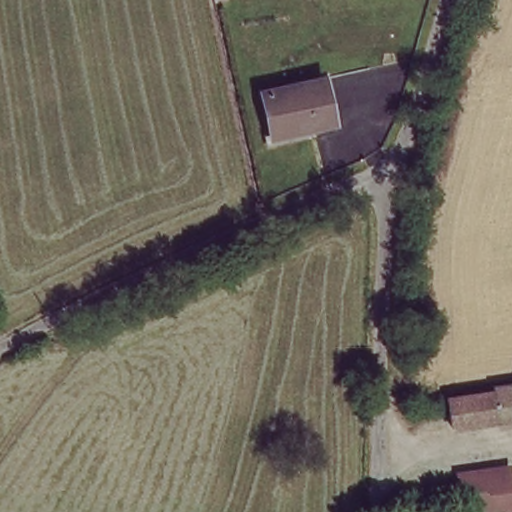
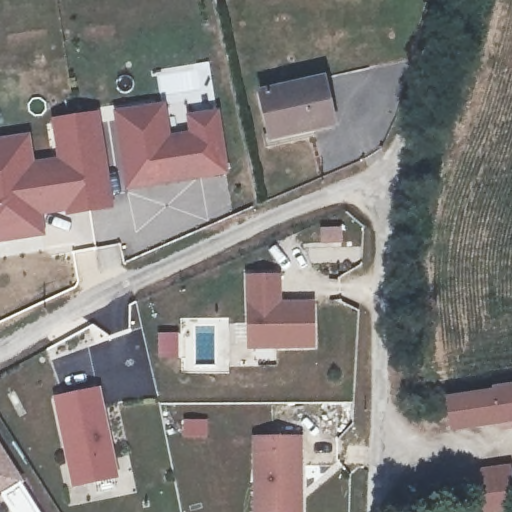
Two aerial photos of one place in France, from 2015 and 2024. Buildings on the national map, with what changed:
unchanged [(327,82),(338,128),(275,144),(264,99),(327,82)]
new [(113,110),(165,102),(170,134),(187,131),(185,115),(219,109),(228,174),(123,190),(113,110)]
new [(32,161),(55,158),(50,119),(98,111),(112,209),(65,216),(65,212),(41,215),(43,236),(0,242),(0,136),(29,132),(32,161)]
new [(245,275),(280,273),(280,300),(315,299),(315,348),(247,350),(245,275)]
new [(100,385),(118,477),(72,487),(52,396),(100,385)]
unchanged [(494,424),(450,430),(446,402),(487,396),(486,390),(512,386),(512,431),(510,431),(496,433),(494,424)]
new [(301,435),(301,512),(252,512),(252,436),(301,435)]
new [(0,496),(0,443),(24,481),(0,496)]
unchanged [(463,512),(460,473),(510,468),(512,494),(512,510),(485,512),(463,512)]

